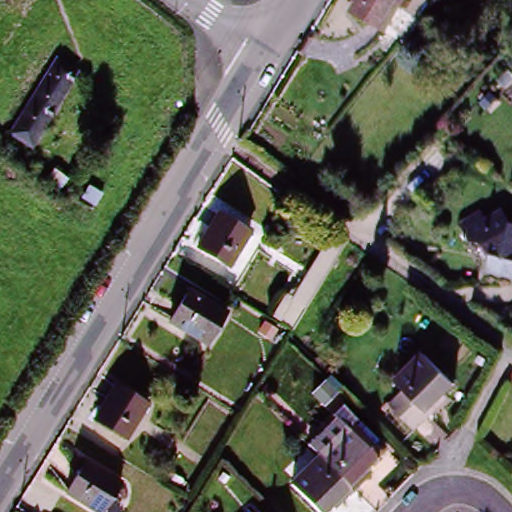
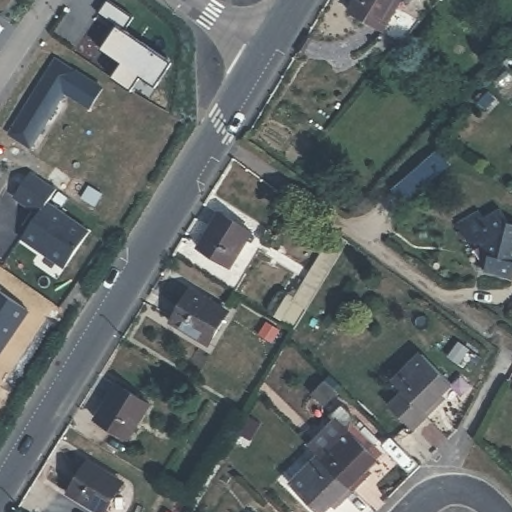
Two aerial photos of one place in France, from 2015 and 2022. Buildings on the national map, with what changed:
new [(125,24),(170,53),(154,79),(143,71),(133,85),(113,73),(122,58),(102,44),(103,41),(99,39),(112,18),(98,8),(103,0),(109,0),(132,15),(125,24)]
unchanged [(347,14),(355,0),(399,0),(378,33),(347,14)]
unchanged [(55,63),(76,75),(68,89),(31,149),(10,137),(55,63)]
new [(27,170),(62,193),(52,208),(86,230),(63,265),(19,237),(35,212),(10,195),(27,170)]
unchanged [(510,277),(482,269),(487,252),(481,241),(467,238),(457,220),(478,207),(483,214),(498,204),(507,220),(512,222),(512,269),(510,277)]
unchanged [(227,267),(197,247),(219,212),(249,230),(227,267)]
unchanged [(280,323),(337,233),(348,242),(338,259),(332,268),(292,334),(280,323)]
new [(0,348),(0,291),(26,309),(0,348)]
unchanged [(208,348),(172,325),(191,294),(227,317),(208,348)]
unchanged [(447,378),(435,393),(440,399),(415,429),(388,404),(400,390),(395,383),(420,353),(447,378)]
unchanged [(127,442),(96,423),(117,389),(148,408),(127,442)]
unchanged [(320,457),(324,452),(318,444),(341,419),(380,457),(367,469),(372,475),(355,491),(320,457)]
unchanged [(343,504),(339,501),(328,512),(319,512),(293,486),(320,457),(355,491),(343,504)]
unchanged [(107,512),(91,512),(67,498),(87,466),(123,487),(107,512)]

